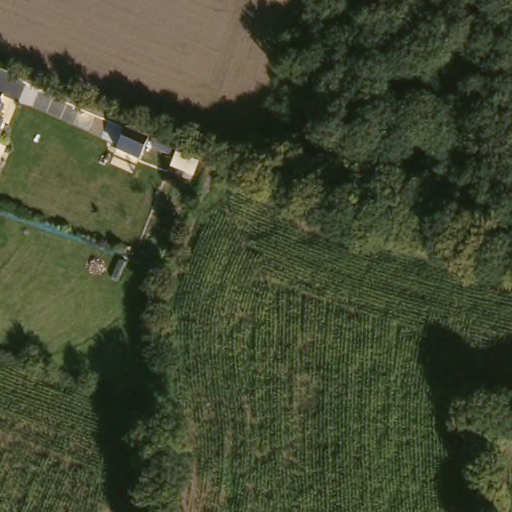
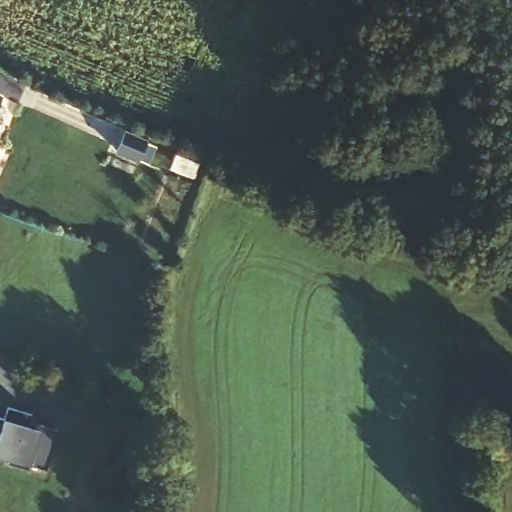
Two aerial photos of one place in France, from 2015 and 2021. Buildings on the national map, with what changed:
unchanged [(0,127),(0,96),(10,99),(0,127)]
unchanged [(136,129),(159,139),(151,158),(128,148),(136,129)]
new [(6,407),(31,415),(29,422),(57,432),(47,470),(29,465),(0,455),(0,418),(2,419),(6,407)]

